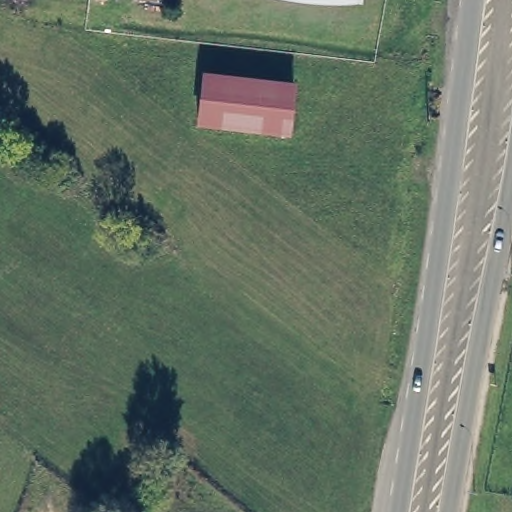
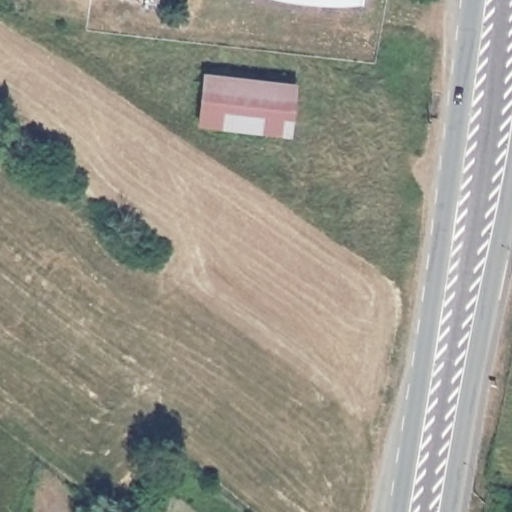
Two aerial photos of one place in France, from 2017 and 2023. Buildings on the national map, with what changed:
unchanged [(203,74),(292,86),(284,135),(195,123),(203,74)]

